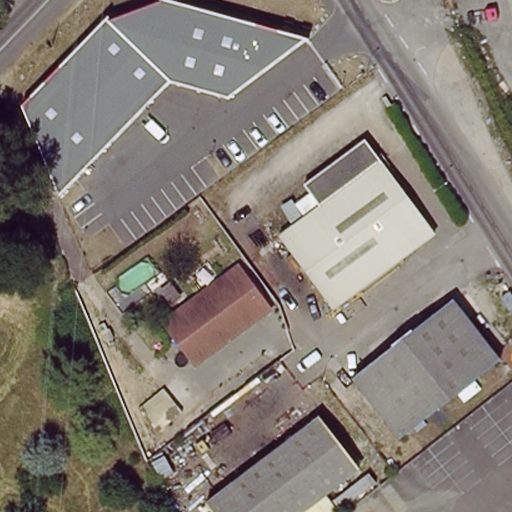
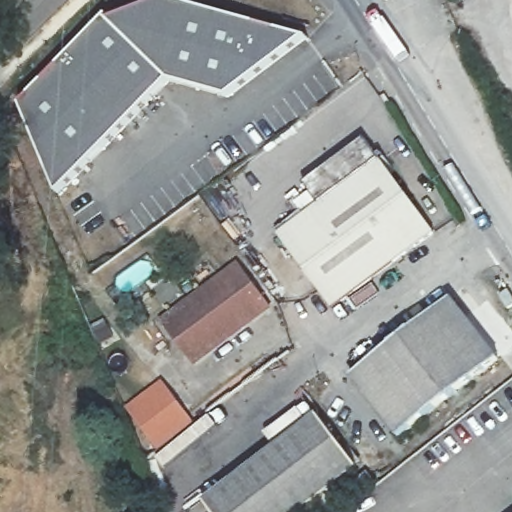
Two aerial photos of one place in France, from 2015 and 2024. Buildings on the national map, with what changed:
unchanged [(230,98),(170,82),(60,196),(22,109),(108,21),(165,1),(308,40),(230,98)]
unchanged [(323,210),(306,189),(366,143),(382,162),(323,210)]
unchanged [(382,162),(435,230),(336,313),(322,296),(281,244),(323,210),(382,162)]
unchanged [(269,308),(198,366),(166,326),(205,295),(189,276),(206,262),(222,282),(238,268),(269,308)]
unchanged [(492,308),(490,308),(480,310),(475,280),(487,278),(490,294),(492,308)]
unchanged [(452,301),(499,357),(399,437),(354,382),(452,301)]
new [(194,426),(159,453),(125,410),(162,382),(194,426)]
unchanged [(208,511),(317,420),(360,471),(328,499),(338,512),(209,512),(208,511)]

